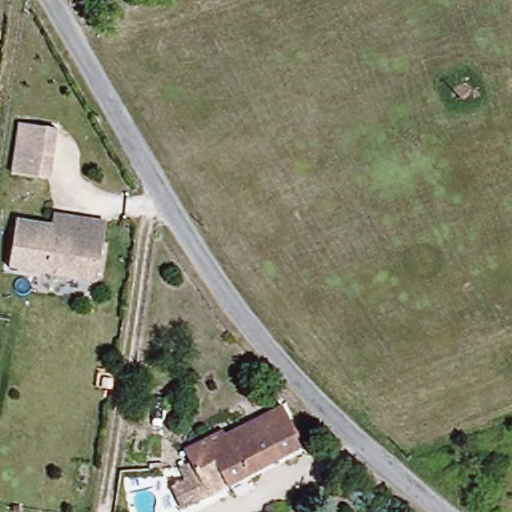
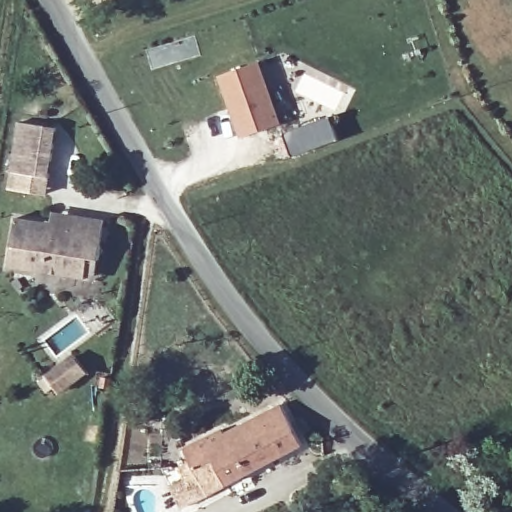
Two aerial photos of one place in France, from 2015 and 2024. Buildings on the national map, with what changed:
new [(279,124),(241,136),(221,73),(259,60),(279,124)]
unchanged [(15,122),(53,128),(46,176),(7,170),(15,122)]
unchanged [(83,278),(4,267),(11,219),(46,223),(49,214),(101,222),(98,247),(95,260),(91,279),(83,278)]
unchanged [(172,487),(184,480),(179,470),(190,464),(184,452),(226,431),(228,435),(281,409),(302,448),(196,502),(183,509),(172,487)]

